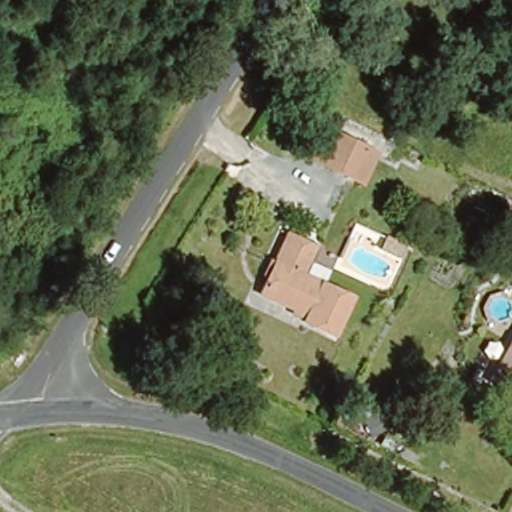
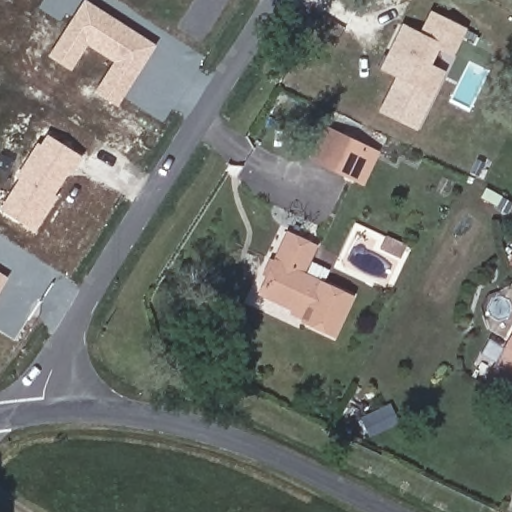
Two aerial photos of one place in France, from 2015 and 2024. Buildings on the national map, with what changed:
new [(116,62),(88,44),(71,71),(51,59),(85,4),(155,48),(117,107),(95,94),(116,62)]
new [(395,77),(380,70),(403,25),(419,32),(430,11),(467,31),(454,57),(443,52),(436,66),(446,72),(417,131),(378,112),(395,77)]
new [(23,164),(27,166),(47,135),(83,157),(35,232),(0,210),(0,208),(23,164)]
unchanged [(313,162),(327,135),(371,159),(357,184),(313,162)]
unchanged [(287,235),(316,250),(305,271),(356,299),(332,344),(301,328),(305,322),(256,295),(287,235)]
new [(9,277),(0,292),(0,272),(9,277)]
unchanged [(512,341),(512,390),(491,378),(512,341)]

